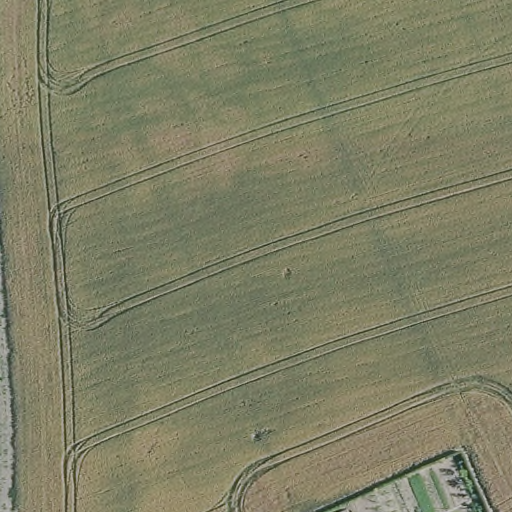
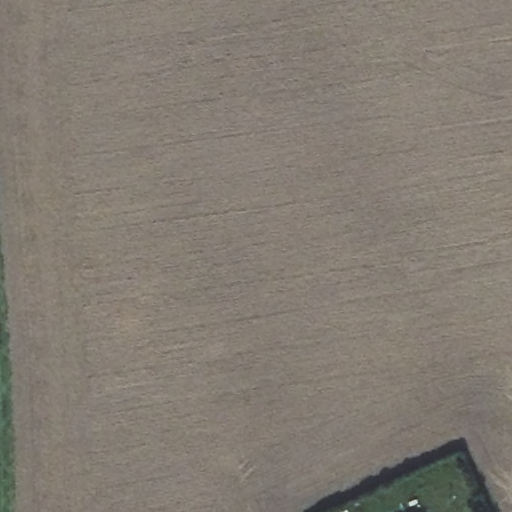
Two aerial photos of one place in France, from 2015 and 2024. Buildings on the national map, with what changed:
[]

